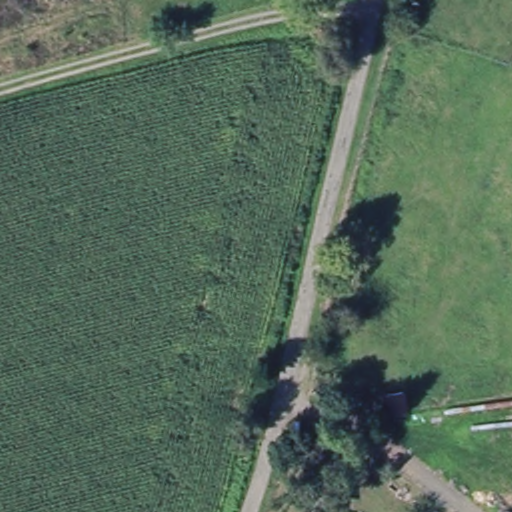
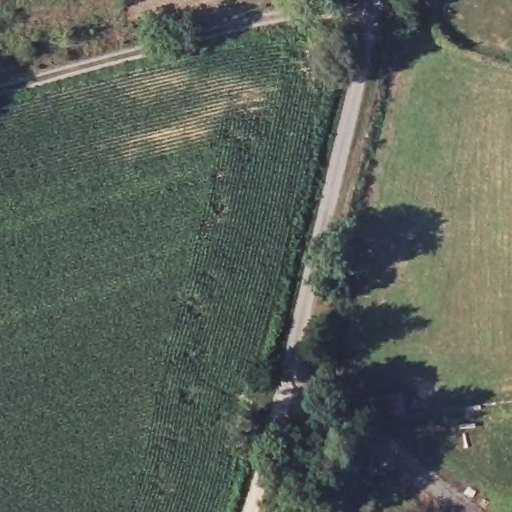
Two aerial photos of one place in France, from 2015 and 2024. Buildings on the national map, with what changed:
unchanged [(342,487),(348,487),(349,512),(324,512),(317,453),(336,451),(342,487)]

